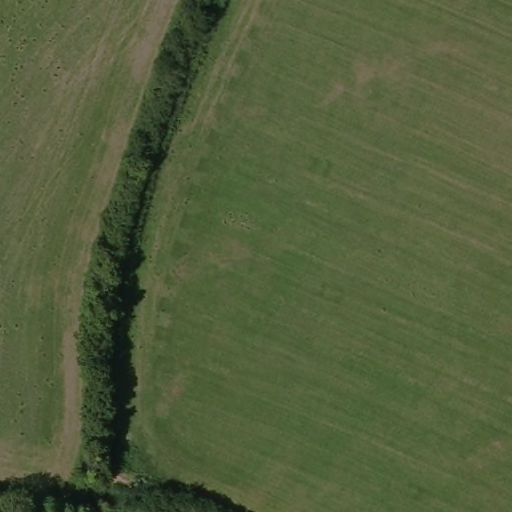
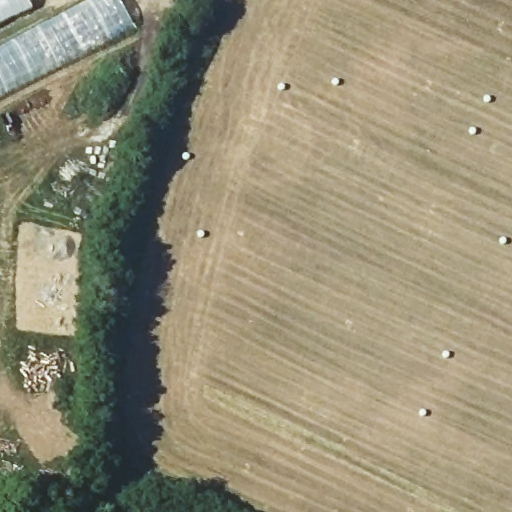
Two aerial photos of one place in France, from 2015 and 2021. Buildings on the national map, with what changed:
new [(32,10),(0,27),(0,0),(27,0),(32,10)]
new [(104,0),(119,0),(134,26),(0,95),(0,54),(104,0)]

